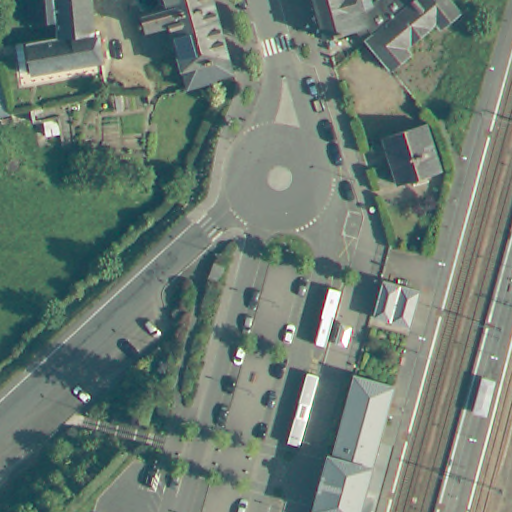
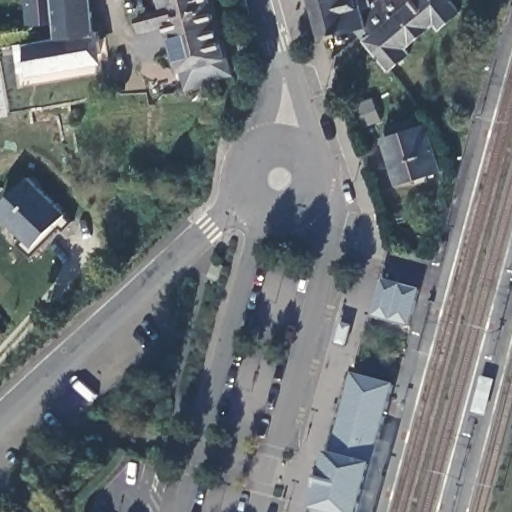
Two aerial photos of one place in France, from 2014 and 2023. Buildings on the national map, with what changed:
unchanged [(26,29),(23,0),(49,0),(51,26),(26,29)]
unchanged [(97,58),(72,63),(74,70),(29,77),(23,46),(52,41),(51,26),(49,0),(87,0),(91,40),(95,40),(97,58)]
unchanged [(190,93),(172,28),(145,35),(141,19),(168,13),(165,0),(213,0),(235,79),(220,84),(219,87),(215,86),(214,90),(190,93)]
unchanged [(365,43),(356,33),(323,43),(320,29),(312,0),(415,0),(375,34),(365,43)]
unchanged [(439,34),(434,27),(405,49),(411,57),(391,72),(365,43),(375,34),(415,0),(445,0),(459,16),(439,34)]
unchanged [(12,117),(0,119),(0,67),(1,66),(12,117)]
unchanged [(422,126),(437,170),(395,185),(378,142),(422,126)]
new [(0,205),(27,178),(64,214),(72,221),(63,230),(58,227),(32,256),(19,244),(24,238),(0,215),(0,205)]
unchanged [(416,292),(406,328),(371,318),(380,282),(416,292)]
new [(0,337),(0,331),(3,334),(0,337)]
unchanged [(353,512),(311,512),(311,511),(306,510),(322,454),(327,455),(351,373),(390,383),(373,440),(353,512)]
unchanged [(388,444),(369,512),(353,512),(373,440),(388,444)]

